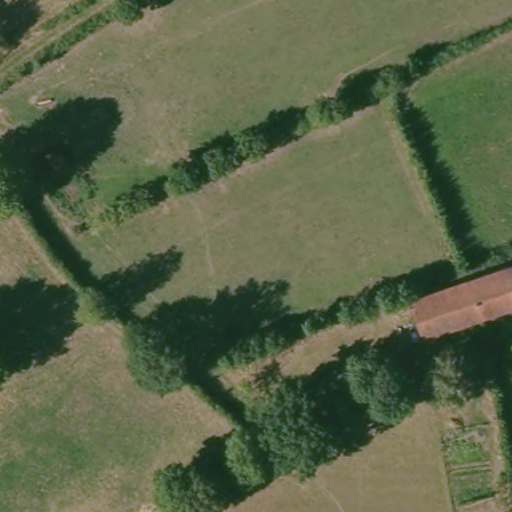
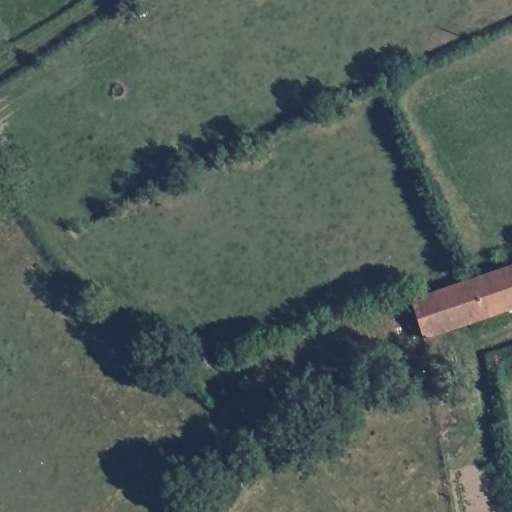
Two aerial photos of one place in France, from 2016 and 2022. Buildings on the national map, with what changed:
unchanged [(467,281),(512,264),(512,310),(484,320),(467,281)]
unchanged [(419,315),(414,301),(467,281),(484,320),(428,340),(419,315)]

